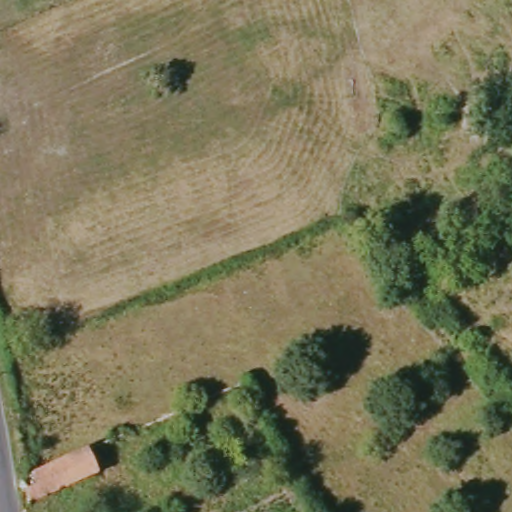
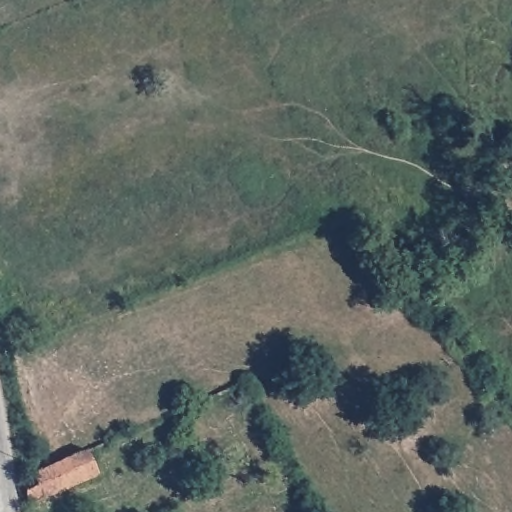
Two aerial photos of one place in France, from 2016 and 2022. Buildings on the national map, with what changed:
unchanged [(90,450),(99,473),(29,502),(26,477),(90,450)]

